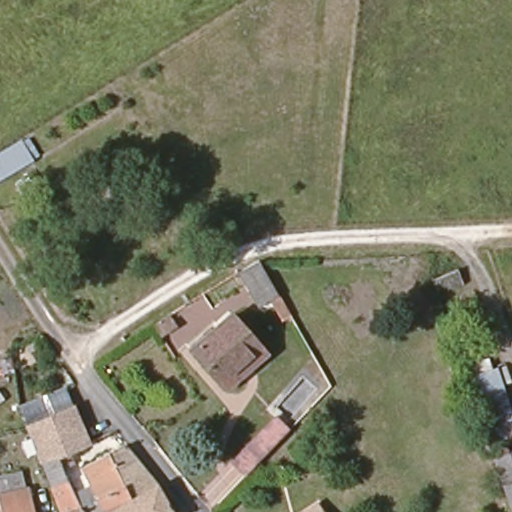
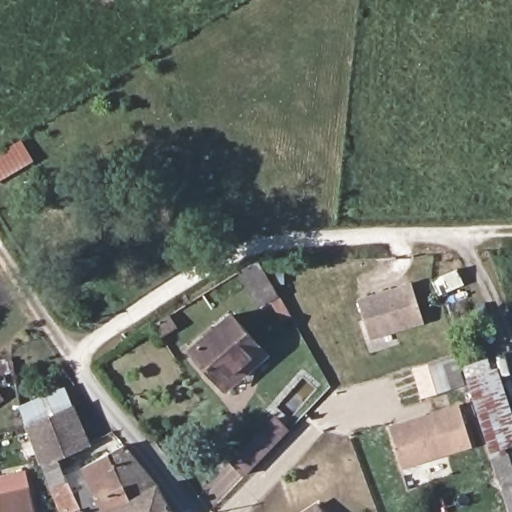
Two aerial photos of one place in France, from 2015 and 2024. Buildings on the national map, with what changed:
unchanged [(28,137),(40,156),(0,181),(0,154),(28,137)]
unchanged [(255,259),(278,299),(264,308),(241,268),(255,259)]
new [(370,340),(357,298),(410,281),(424,322),(370,340)]
unchanged [(224,383),(218,376),(190,346),(231,311),(256,341),(261,347),(224,383)]
unchanged [(166,321),(174,316),(175,315),(181,325),(165,336),(157,326),(166,321)]
unchanged [(512,402),(512,439),(495,445),(493,446),(491,442),(471,381),(501,372),(512,402)]
unchanged [(65,390),(74,410),(28,425),(21,405),(65,390)]
new [(403,469),(390,425),(458,404),(471,448),(403,469)]
unchanged [(74,410),(90,450),(82,452),(74,455),(59,460),(45,465),(28,425),(74,410)]
unchanged [(239,463),(281,421),(293,435),(292,435),(251,478),(239,463)]
unchanged [(512,439),(512,496),(495,445),(512,439)]
unchanged [(158,487),(173,512),(138,512),(135,503),(143,498),(112,457),(125,453),(158,487)]
unchanged [(143,498),(135,503),(138,512),(82,512),(73,491),(89,485),(80,469),(89,465),(112,457),(143,498)]
unchanged [(59,460),(73,491),(82,512),(65,512),(45,465),(59,460)]
unchanged [(24,467),(29,486),(34,485),(38,512),(2,512),(0,498),(0,471),(24,467)]
unchanged [(326,512),(307,512),(320,503),(326,512)]

